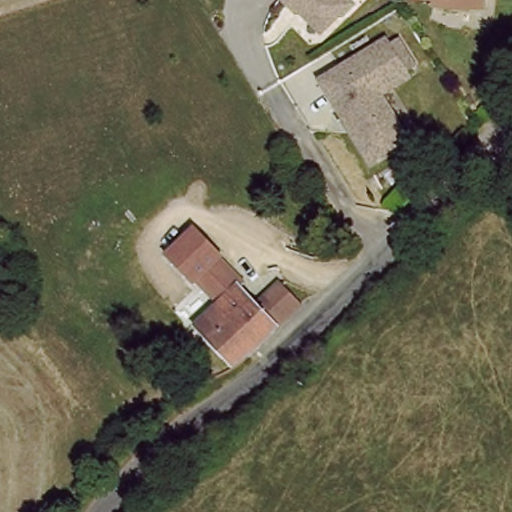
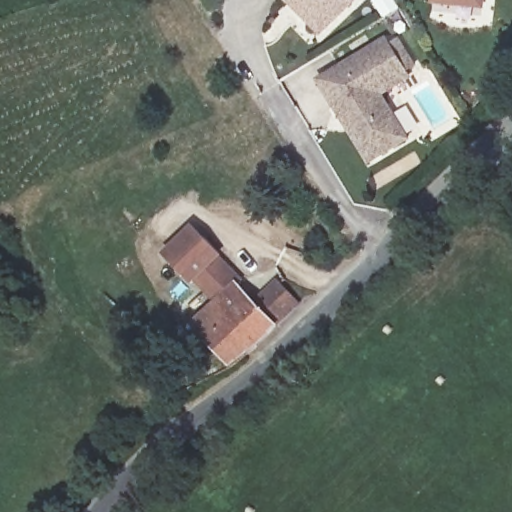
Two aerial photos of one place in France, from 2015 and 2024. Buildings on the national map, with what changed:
unchanged [(303,17),(286,0),(342,0),(320,22),(315,28),(303,17)]
unchanged [(481,4),(449,1),(449,0),(482,0),(481,4)]
unchanged [(375,34),(398,70),(371,88),(400,132),(369,153),(364,156),(335,112),(311,76),(375,34)]
unchanged [(217,298),(168,254),(193,231),(238,278),(217,298)]
unchanged [(288,309),(274,324),(276,326),(257,344),(259,347),(232,364),(203,328),(196,333),(187,323),(195,318),(199,320),(239,283),(251,296),(264,285),(288,309)]

